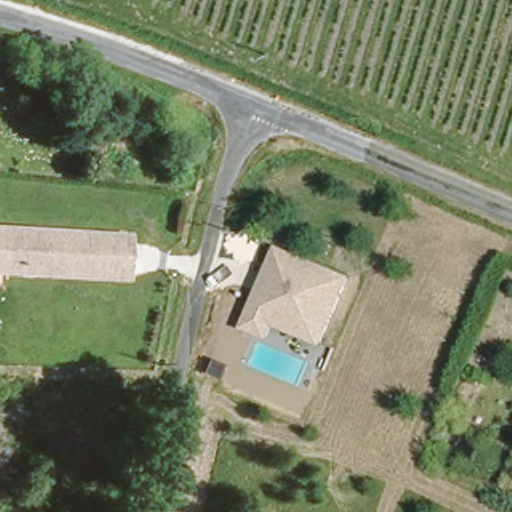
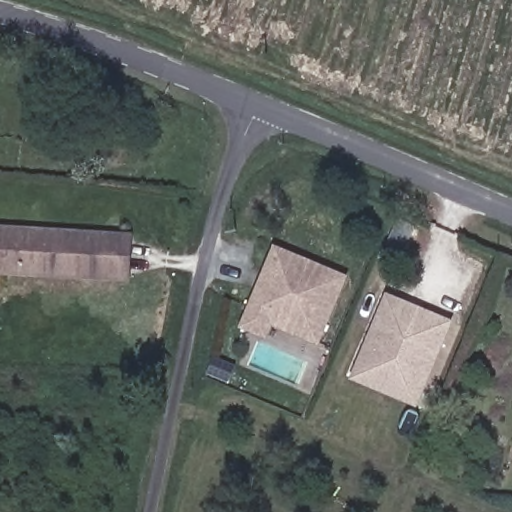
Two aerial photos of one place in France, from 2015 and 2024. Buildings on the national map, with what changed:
unchanged [(0,234),(55,237),(126,239),(125,280),(37,277),(25,277),(0,276),(0,234)]
unchanged [(319,345),(273,328),(267,341),(242,328),(276,246),(349,276),(319,345)]
new [(417,408),(351,380),(387,293),(454,321),(417,408)]

